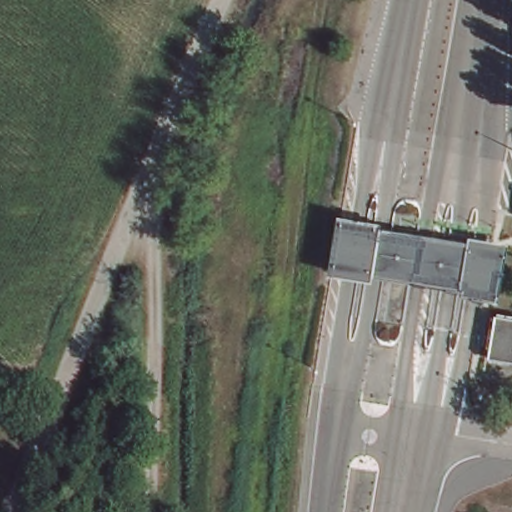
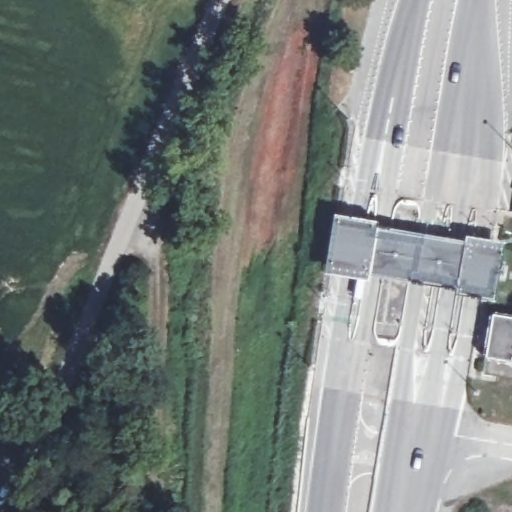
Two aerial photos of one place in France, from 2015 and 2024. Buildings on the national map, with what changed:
unchanged [(377,222),(375,227),(464,241),(465,236),(505,243),(495,302),(457,296),(457,289),(369,275),(367,281),(324,274),(332,215),(377,222)]
unchanged [(512,326),(512,365),(484,361),(490,323),(512,326)]

